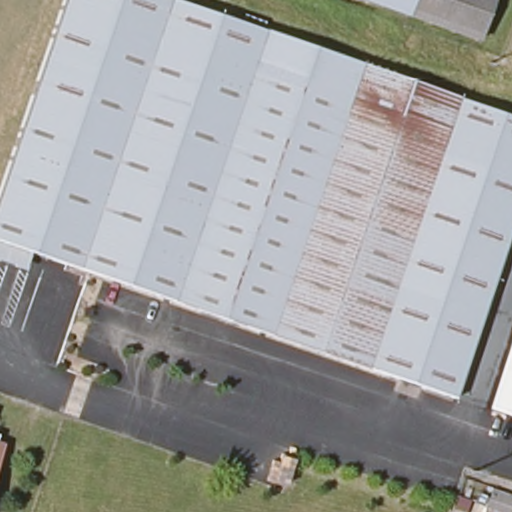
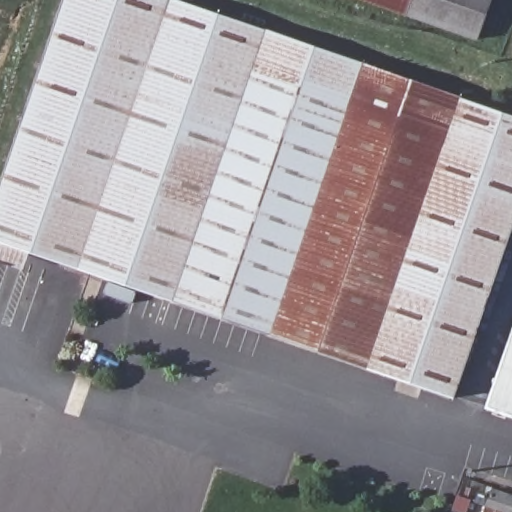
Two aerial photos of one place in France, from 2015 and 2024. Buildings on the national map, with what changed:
unchanged [(0,242),(0,190),(66,0),(184,0),(307,43),(216,316),(0,242)]
unchanged [(497,6),(476,57),(316,0),(482,0),(497,6)]
unchanged [(512,228),(452,398),(216,316),(307,43),(512,111),(512,228)]
unchanged [(512,327),(512,417),(485,407),(512,327)]
unchanged [(495,490),(512,496),(512,512),(495,512),(487,510),(495,490)]

